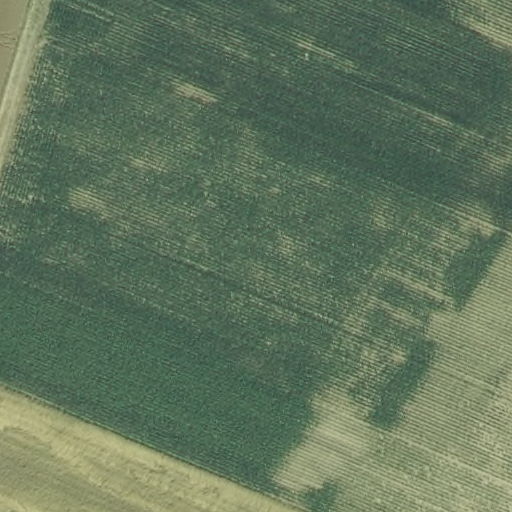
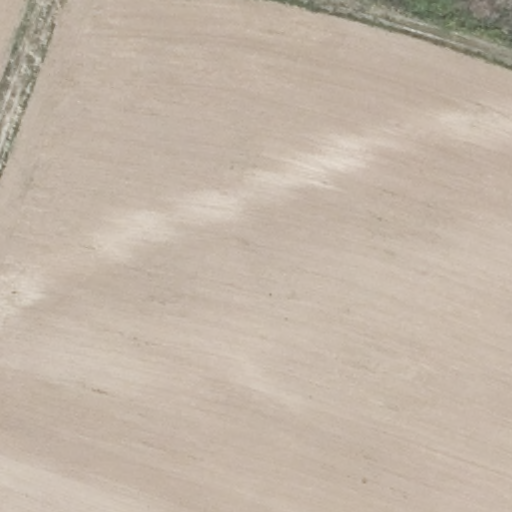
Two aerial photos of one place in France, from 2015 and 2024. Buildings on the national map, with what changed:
[]

